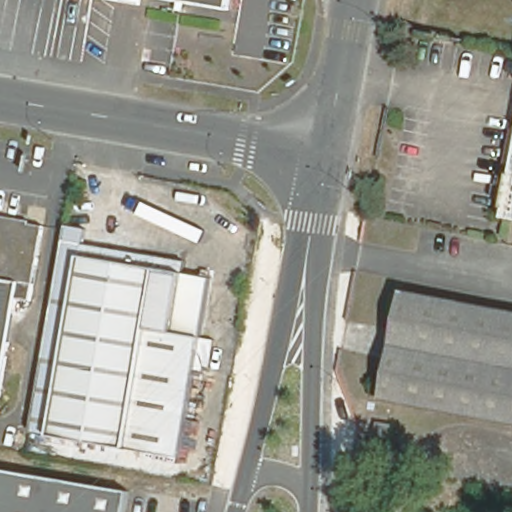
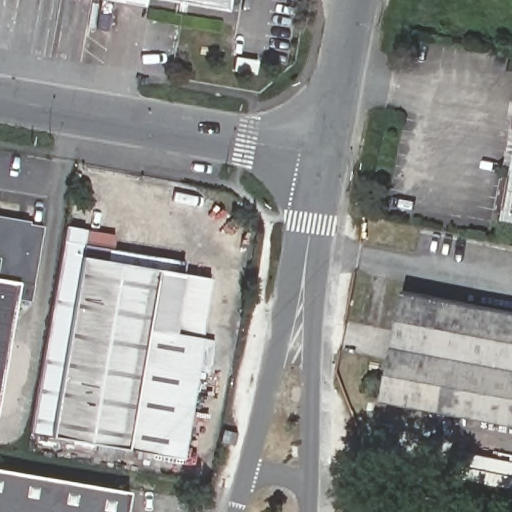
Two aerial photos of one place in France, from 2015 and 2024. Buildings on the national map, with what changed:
unchanged [(229,0),(227,10),(165,0),(229,0)]
unchanged [(502,228),(512,174),(512,230),(502,228)]
unchanged [(30,302),(17,299),(14,314),(9,343),(0,394),(0,220),(42,227),(30,302)]
unchanged [(157,453),(101,444),(26,431),(57,252),(59,240),(77,243),(88,245),(86,257),(132,264),(211,278),(181,457),(157,453)]
unchanged [(512,314),(512,419),(375,390),(397,289),(512,314)]
unchanged [(394,425),(392,442),(374,438),(377,422),(394,425)]
unchanged [(126,512),(0,512),(0,469),(130,493),(126,512)]

